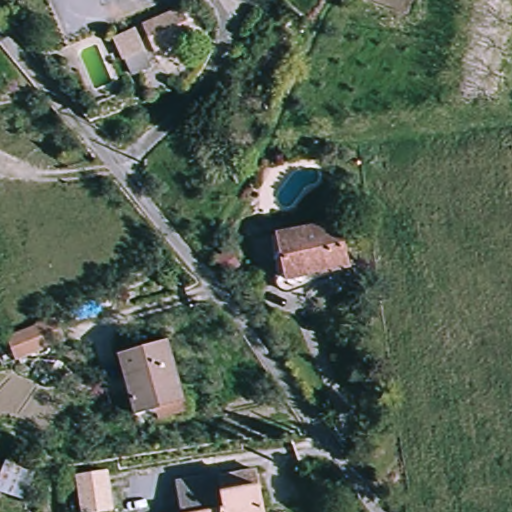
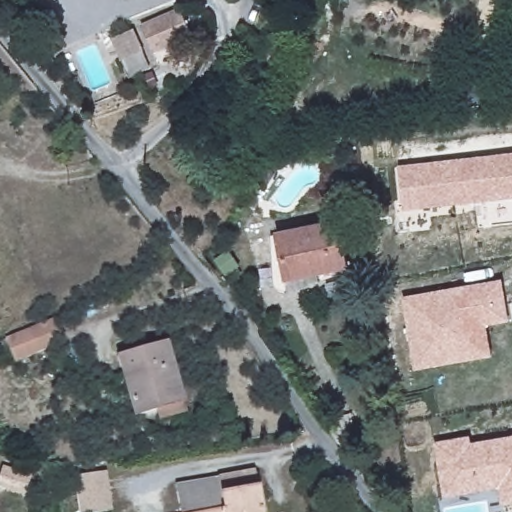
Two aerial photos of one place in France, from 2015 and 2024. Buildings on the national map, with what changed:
unchanged [(191,37),(148,50),(140,21),(182,8),(191,37)]
unchanged [(114,37),(136,26),(146,51),(123,62),(114,37)]
unchanged [(252,67),(283,28),(297,41),(269,80),(252,67)]
new [(493,87),(491,106),(467,103),(467,108),(450,107),(453,83),(493,87)]
new [(398,166),(512,154),(512,198),(403,211),(398,166)]
unchanged [(286,280),(278,235),(340,224),(349,270),(286,280)]
new [(493,358),(416,370),(403,297),(503,279),(510,322),(487,327),(493,358)]
unchanged [(7,338),(52,318),(63,341),(17,361),(7,338)]
unchanged [(167,419),(164,410),(143,418),(122,360),(166,343),(188,401),(191,410),(167,419)]
new [(499,489),(443,498),(434,443),(471,436),(472,444),(512,436),(512,506),(502,508),(499,489)]
demolished [(0,492),(0,476),(7,459),(37,472),(29,503),(0,492)]
new [(109,512),(79,512),(74,476),(108,471),(113,512),(109,512)]
unchanged [(257,475),(260,512),(182,512),(180,482),(257,475)]

